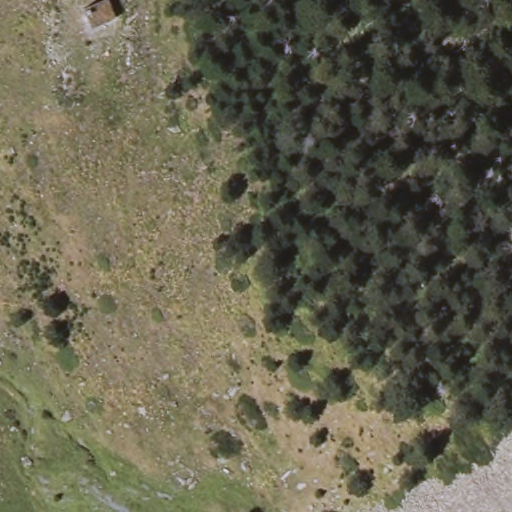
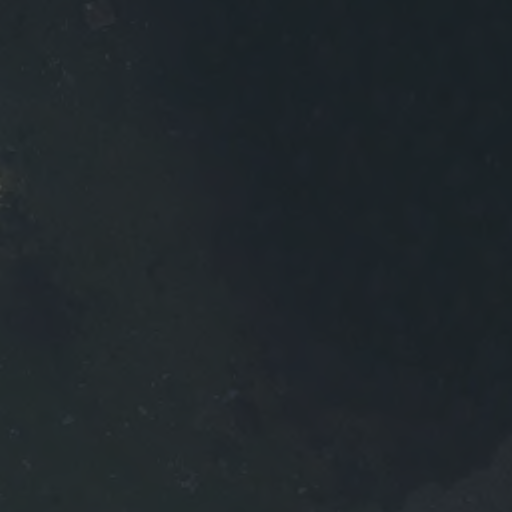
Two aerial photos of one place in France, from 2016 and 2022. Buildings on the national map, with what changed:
unchanged [(93,31),(84,9),(107,0),(109,0),(117,20),(93,31)]

